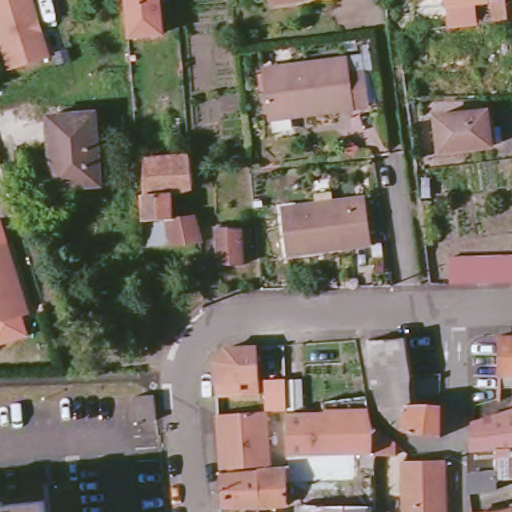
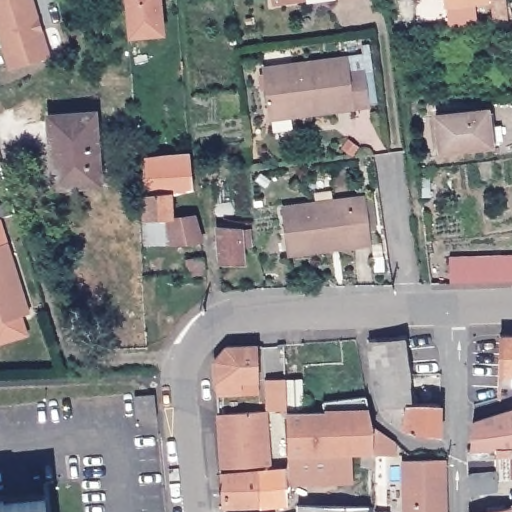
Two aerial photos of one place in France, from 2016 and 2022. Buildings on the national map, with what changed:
unchanged [(37,20),(35,25),(37,30),(41,32),(50,59),(10,71),(0,42),(0,0),(31,0),(37,20)]
unchanged [(162,34),(127,36),(124,0),(159,0),(162,34)]
unchanged [(503,15),(490,17),(488,0),(501,0),(503,15)]
unchanged [(367,106),(352,109),(307,115),(306,109),(271,114),(265,70),(346,60),(348,76),(362,74),(367,106)]
unchanged [(435,117),(488,110),(493,146),(440,152),(435,117)]
unchanged [(58,155),(52,155),(50,117),(95,114),(101,184),(60,188),(58,155)]
unchanged [(197,241),(165,245),(165,244),(143,246),(139,220),(141,220),(138,196),(141,195),(141,174),(141,159),(185,154),(188,186),(166,194),(168,217),(190,214),(197,241)]
unchanged [(282,209),(366,199),(370,234),(330,239),(331,250),(288,255),(282,209)]
unchanged [(216,226),(231,226),(239,229),(242,229),(250,229),(251,247),(243,248),(245,265),(220,265),(216,226)]
unchanged [(7,245),(30,315),(0,324),(0,248),(7,245)]
unchanged [(446,253),(512,251),(512,278),(445,280),(446,253)]
unchanged [(205,273),(189,275),(188,262),(205,261),(205,273)]
unchanged [(396,430),(392,428),(388,425),(385,421),(381,417),(379,413),(376,406),(373,398),(370,385),(367,365),(364,340),(403,337),(406,377),(406,396),(416,396),(416,405),(435,406),(435,438),(401,432),(396,430)]
unchanged [(512,337),(512,386),(501,387),(502,337),(512,337)]
unchanged [(215,358),(225,343),(256,342),(257,343),(257,377),(258,389),(238,390),(238,384),(217,385),(215,358)]
unchanged [(155,417),(135,419),(131,393),(152,391),(155,417)]
unchanged [(393,456),(375,454),(288,459),(287,415),(317,413),(325,412),(323,402),(355,398),(367,397),(368,403),(370,409),(370,414),(371,417),(373,421),(375,424),(375,425),(396,441),(393,456)]
unchanged [(512,411),(512,449),(496,450),(471,452),(471,448),(472,423),(512,411)]
unchanged [(218,415),(266,412),(269,467),(221,470),(218,415)]
unchanged [(467,450),(471,448),(471,452),(496,450),(496,476),(496,491),(468,494),(467,450)]
unchanged [(512,449),(512,476),(496,476),(496,450),(512,449)]
unchanged [(445,461),(447,512),(405,512),(402,462),(445,461)]
unchanged [(286,470),(287,505),(275,506),(260,508),(260,512),(243,512),(242,510),(223,511),(221,474),(258,472),(286,470)]
unchanged [(297,509),(297,506),(307,506),(306,485),(328,483),(330,506),(374,507),(374,512),(273,512),(273,510),(297,509)]
unchanged [(3,502),(3,505),(45,501),(46,512),(0,512),(0,503),(3,502)]
unchanged [(512,506),(512,508),(511,506),(512,506)]
unchanged [(512,512),(499,512),(512,510),(512,512)]

